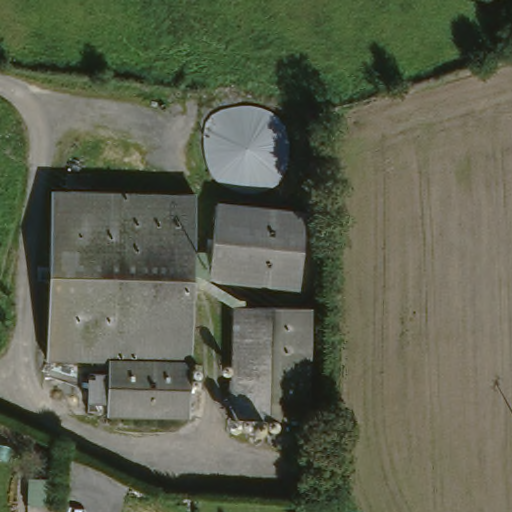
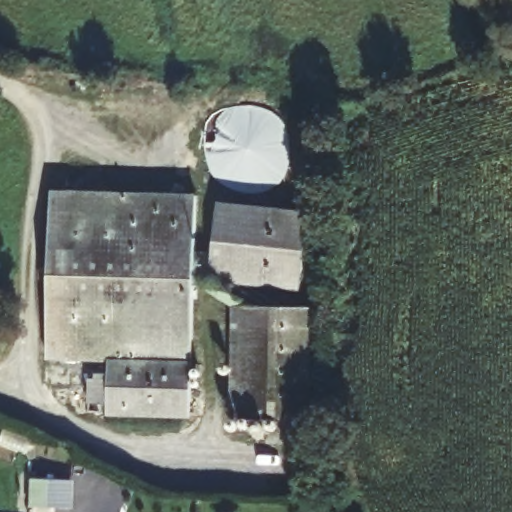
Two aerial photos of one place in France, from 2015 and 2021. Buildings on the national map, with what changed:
unchanged [(196,200),(187,420),(104,415),(105,367),(45,365),(51,195),(196,200)]
unchanged [(214,202),(306,216),(301,286),(212,280),(214,202)]
unchanged [(245,310),(312,314),(306,449),(263,446),(264,419),(239,419),(245,310)]
unchanged [(62,504),(39,503),(36,503),(37,476),(62,476),(62,504)]

